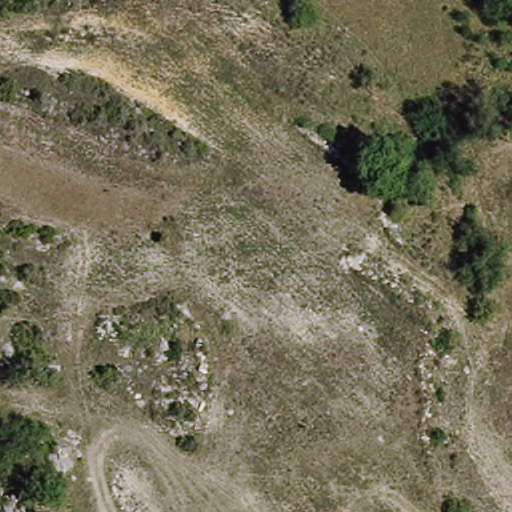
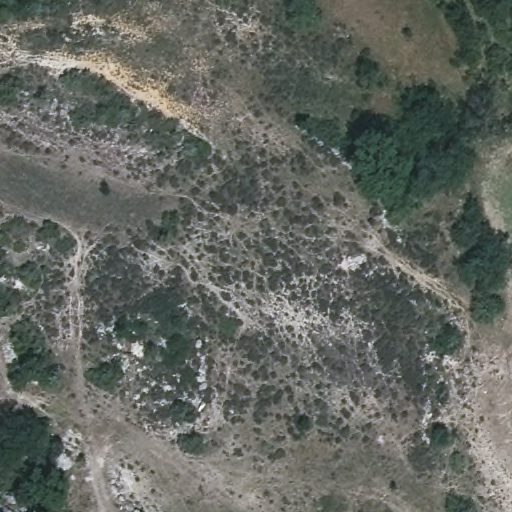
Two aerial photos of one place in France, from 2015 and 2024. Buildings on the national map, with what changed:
[]

